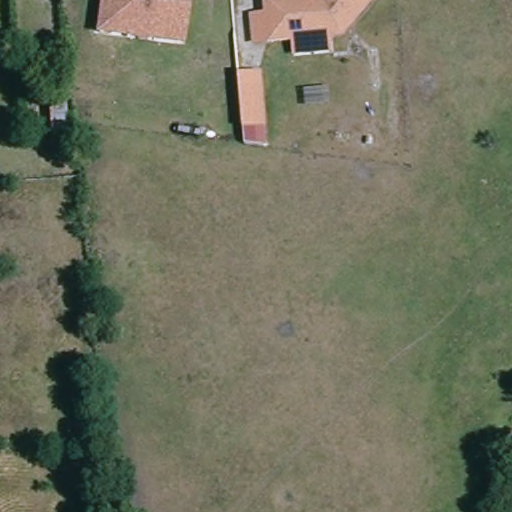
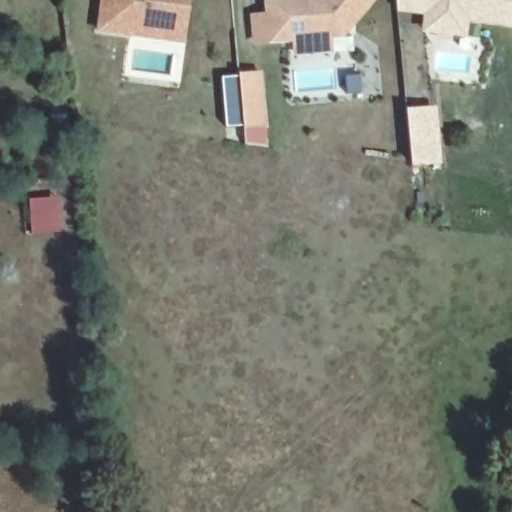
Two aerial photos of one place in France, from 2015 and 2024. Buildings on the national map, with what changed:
unchanged [(97,0),(192,0),(185,44),(94,31),(97,0)]
unchanged [(290,37),(267,39),(252,41),(250,16),(265,14),(263,0),(366,0),(338,33),(325,34),(326,49),(291,52),(290,37)]
new [(422,16),(397,13),(396,0),(512,0),(512,27),(468,21),(466,39),(420,33),(422,16)]
unchanged [(244,143),(242,125),(241,109),(239,75),(258,74),(262,124),(264,146),(244,143)]
demolished [(65,93),(69,135),(74,135),(75,152),(55,154),(51,139),(46,93),(65,93)]
new [(410,167),(405,109),(436,106),(442,165),(410,167)]

